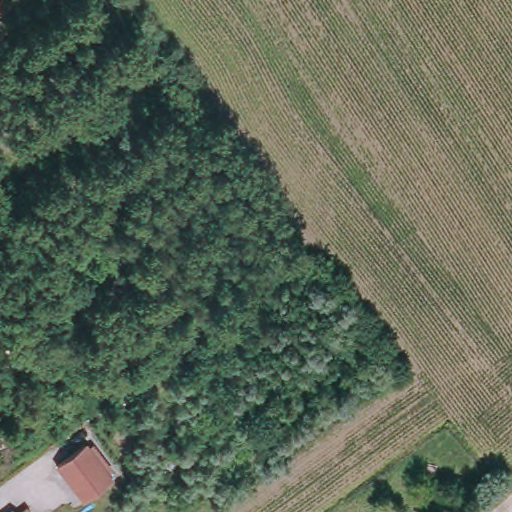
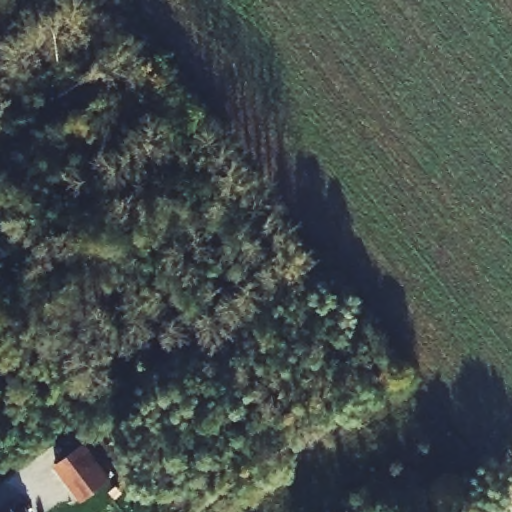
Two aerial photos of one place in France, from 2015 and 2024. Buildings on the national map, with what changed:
unchanged [(84,442),(113,478),(83,501),(55,465),(84,442)]
unchanged [(21,512),(4,512),(15,504),(21,512)]

